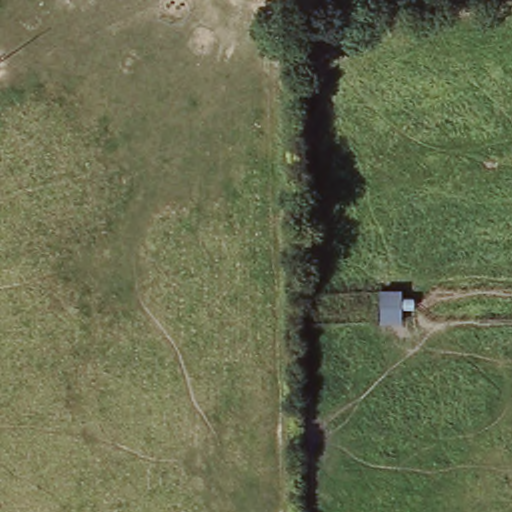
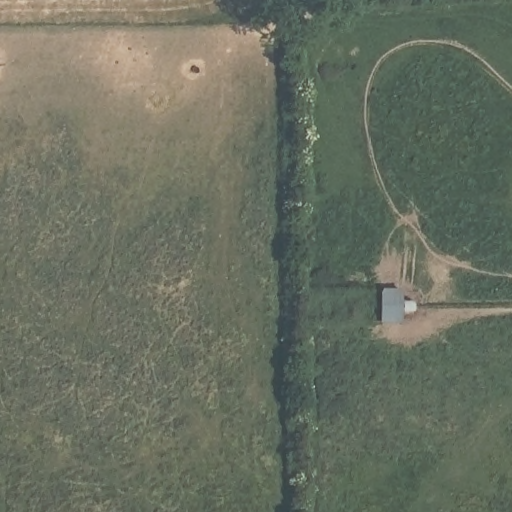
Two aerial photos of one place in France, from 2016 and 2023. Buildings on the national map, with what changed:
unchanged [(402,292),(404,325),(379,326),(377,292),(402,292)]

